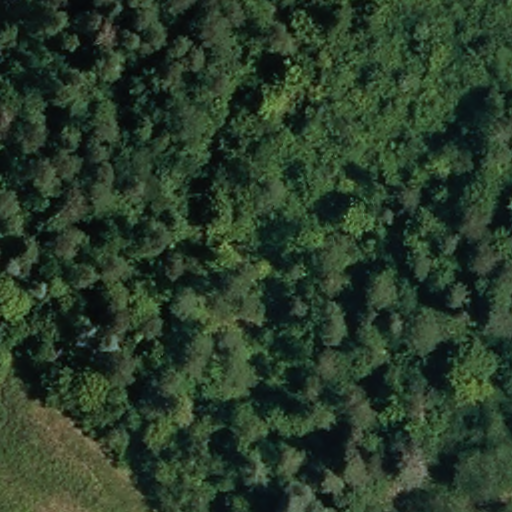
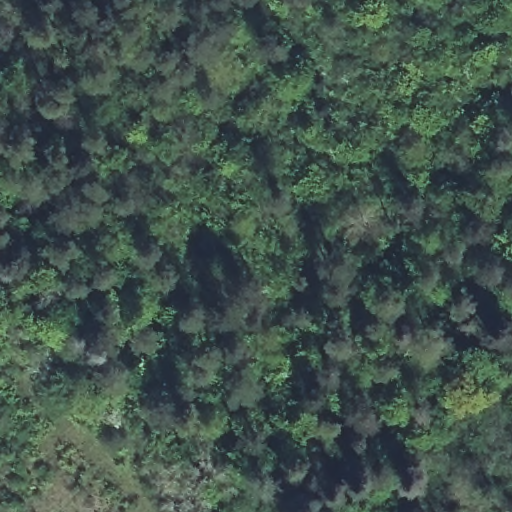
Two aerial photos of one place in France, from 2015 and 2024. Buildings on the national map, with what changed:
[]

